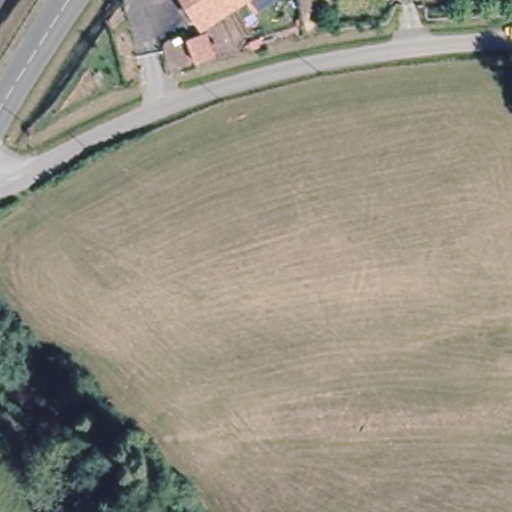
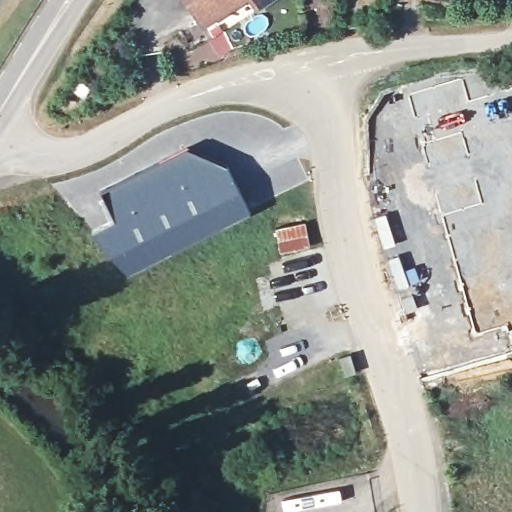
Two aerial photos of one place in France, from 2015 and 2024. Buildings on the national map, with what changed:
unchanged [(195,0),(230,0),(206,16),(195,0)]
new [(114,217),(104,187),(186,146),(229,166),(252,212),(129,275),(92,231),(114,217)]
new [(305,221),(310,245),(280,252),(275,228),(305,221)]

